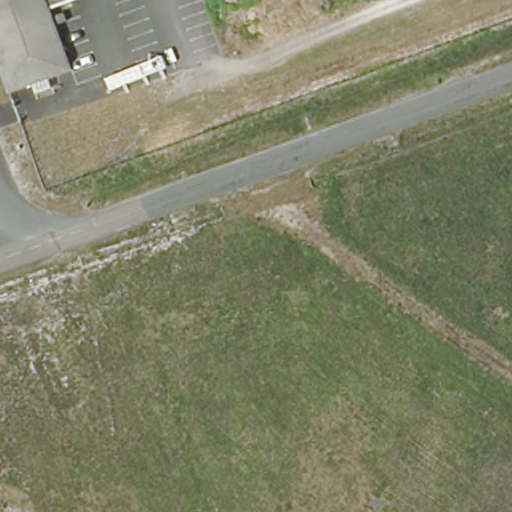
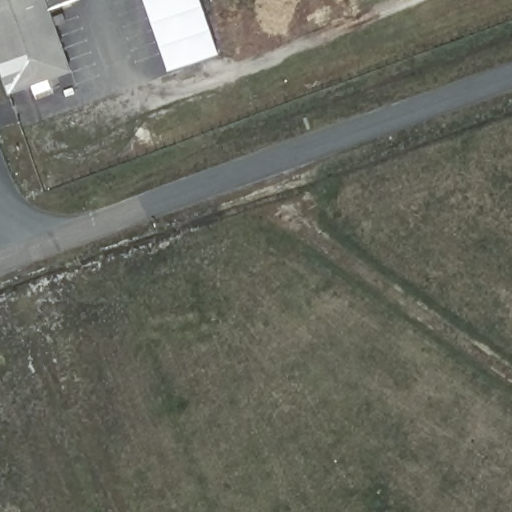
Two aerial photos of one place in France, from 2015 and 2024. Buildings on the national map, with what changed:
unchanged [(50,10),(72,73),(8,94),(0,71),(0,0),(78,0),(50,10)]
new [(220,52),(168,72),(144,0),(202,0),(220,52)]

